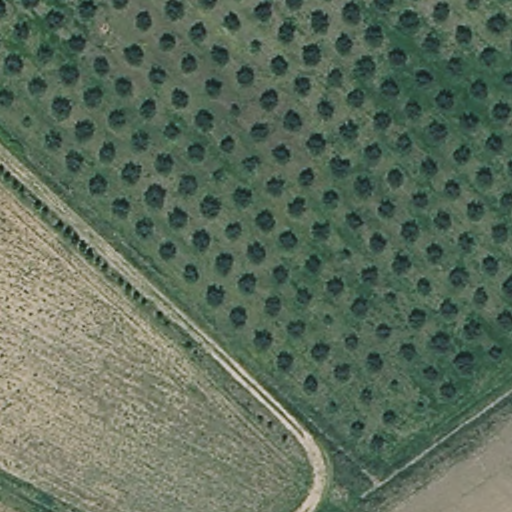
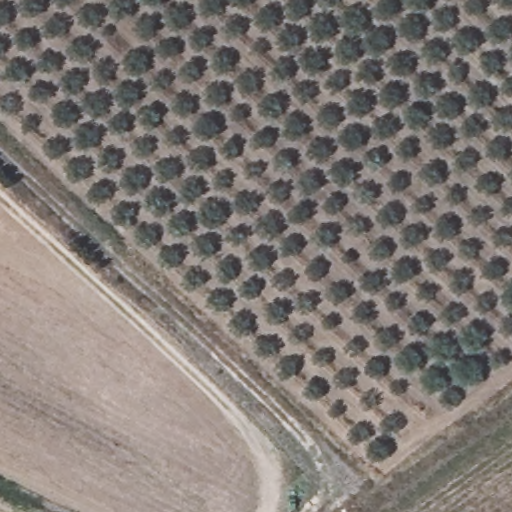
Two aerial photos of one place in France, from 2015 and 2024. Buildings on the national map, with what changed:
[]

